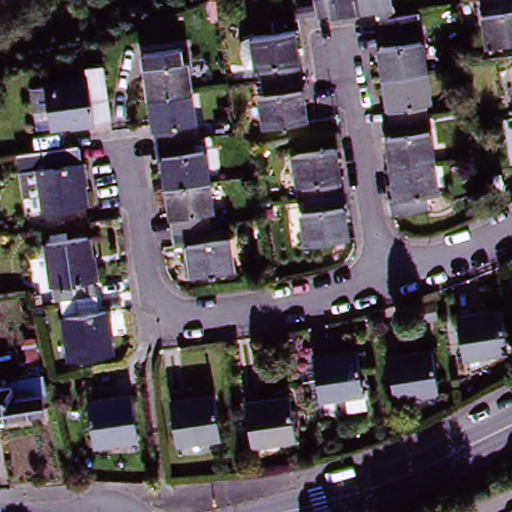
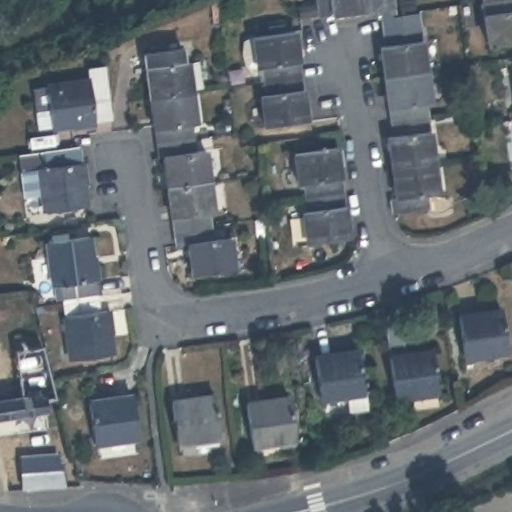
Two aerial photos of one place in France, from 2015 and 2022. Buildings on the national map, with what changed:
unchanged [(318,18),(316,0),(394,0),(396,14),(417,12),(433,104),(426,106),(441,194),(431,196),(433,211),(400,215),(398,206),(405,205),(392,138),(398,137),(382,49),(388,48),(380,10),(318,18)]
unchanged [(512,52),(488,56),(480,0),(512,0),(512,52)]
unchanged [(316,17),(301,19),(299,9),(314,7),(316,17)]
unchanged [(269,128),(268,120),(261,121),(256,91),(264,90),(260,62),(253,63),(243,62),(238,48),(240,35),(249,31),(266,28),(264,17),(275,15),(277,27),(291,24),(306,115),(283,118),(284,126),(269,128)]
unchanged [(161,150),(156,150),(141,47),(144,47),(145,46),(170,42),(172,60),(185,59),(192,126),(187,127),(191,152),(202,152),(209,201),(209,202),(210,204),(209,205),(204,205),(208,234),(209,234),(217,232),(222,232),(224,231),(225,239),(225,240),(225,244),(228,262),(187,267),(182,237),(173,239),(161,150)]
unchanged [(33,113),(30,86),(45,85),(87,79),(85,66),(102,63),(110,119),(50,126),(35,128),(33,113)]
unchanged [(290,157),(288,147),(316,143),(317,152),(332,151),(347,240),(305,247),(300,215),(306,215),(302,186),(293,188),(290,157)]
unchanged [(87,215),(44,220),(42,202),(23,205),(18,165),(45,162),(80,157),(87,215)]
unchanged [(484,207),(475,210),(471,193),(480,191),(484,207)]
unchanged [(99,309),(106,355),(70,361),(60,284),(52,285),(46,241),(88,235),(91,257),(96,256),(99,278),(94,279),(98,309),(99,309)]
unchanged [(498,306),(506,346),(463,357),(457,314),(498,306)]
unchanged [(34,342),(38,363),(31,363),(27,342),(34,342)]
unchanged [(427,342),(438,382),(397,391),(388,352),(427,342)]
unchanged [(357,345),(363,387),(365,399),(346,403),(344,391),(321,395),(315,353),(357,345)]
unchanged [(0,433),(0,393),(17,390),(17,383),(21,383),(19,369),(38,366),(41,380),(43,380),(46,400),(42,401),(44,415),(2,422),(4,432),(0,433)]
unchanged [(212,388),(219,429),(176,435),(170,395),(212,388)]
unchanged [(286,389),(287,389),(289,394),(289,395),(289,397),(294,432),(252,438),(246,395),(286,389)]
unchanged [(130,393),(137,435),(94,441),(89,400),(130,393)]
new [(60,455),(67,486),(24,488),(24,458),(60,455)]

